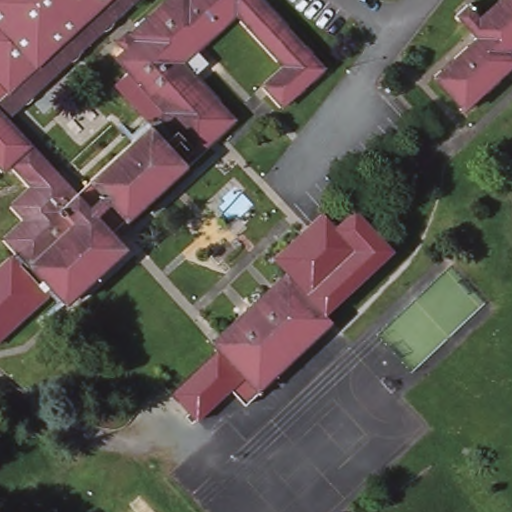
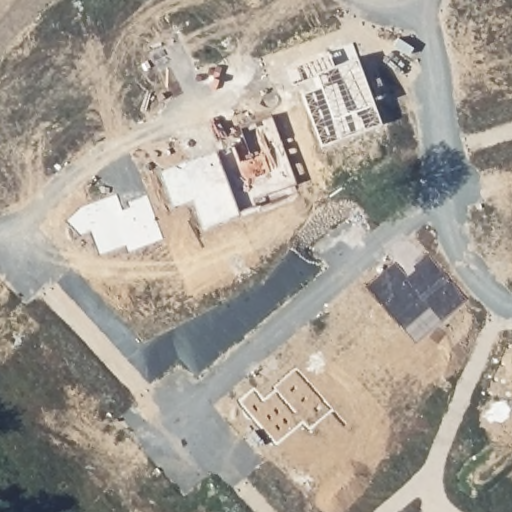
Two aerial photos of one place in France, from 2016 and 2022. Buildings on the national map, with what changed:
demolished [(0,89),(0,0),(102,0),(3,92),(0,89)]
demolished [(0,238),(0,237),(19,219),(5,204),(24,186),(5,166),(0,171),(0,115),(3,119),(72,194),(80,186),(146,123),(110,85),(124,72),(111,58),(119,49),(110,40),(120,31),(124,34),(160,0),(259,0),(319,66),(275,106),(256,86),(278,65),(230,13),(178,62),(229,119),(106,231),(120,245),(59,302),(46,289),(0,332),(0,261),(11,250),(0,238)]
demolished [(451,14),(463,4),(475,18),(495,0),(512,0),(512,42),(502,51),(511,60),(458,108),(430,78),(473,37),(451,14)]
demolished [(0,95),(0,89),(3,92),(0,95)]
demolished [(219,356),(210,347),(287,277),(273,263),(322,217),(335,231),(355,213),(393,254),(324,317),(332,325),(310,346),(285,319),(254,348),(245,356),(271,382),(257,396),(258,397),(245,410),(230,394),(196,425),(173,398),(219,356)]
demolished [(161,385),(207,343),(210,347),(219,356),(173,398),(161,385)]

